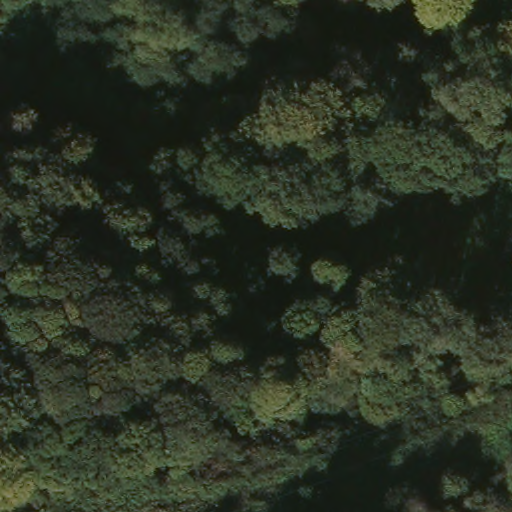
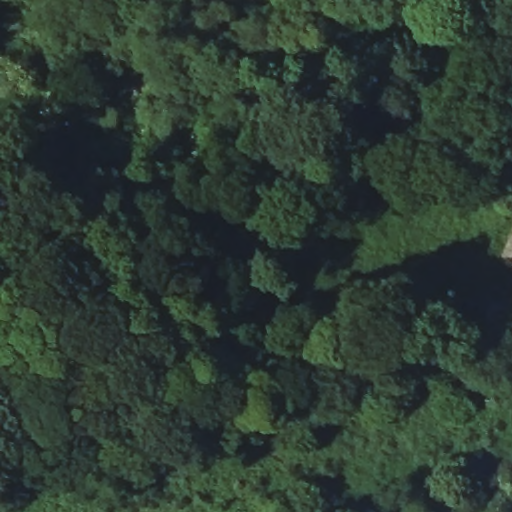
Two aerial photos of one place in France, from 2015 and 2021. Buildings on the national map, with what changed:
unchanged [(511,267),(512,262),(512,268),(511,267)]

